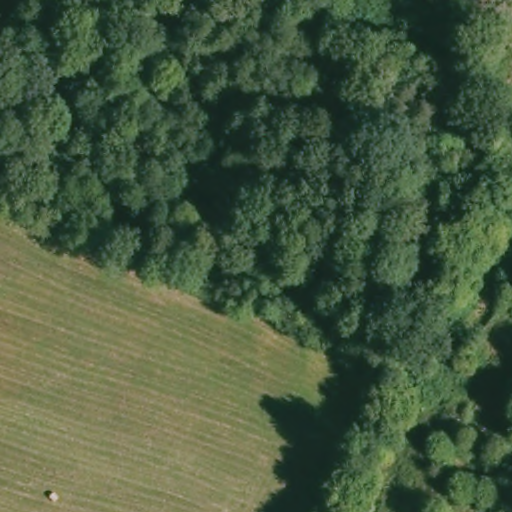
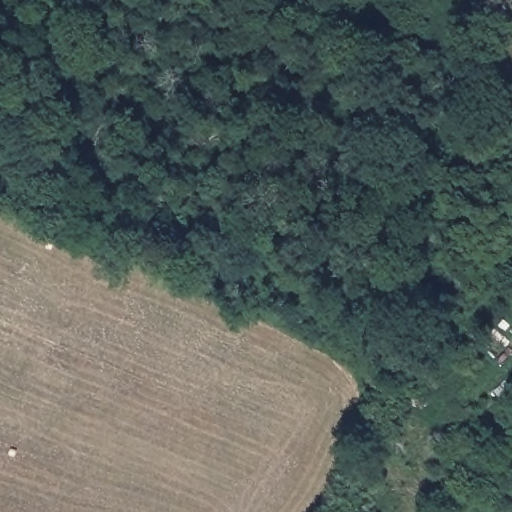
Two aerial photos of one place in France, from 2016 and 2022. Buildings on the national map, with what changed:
unchanged [(506,293),(512,288),(512,298),(506,293)]

